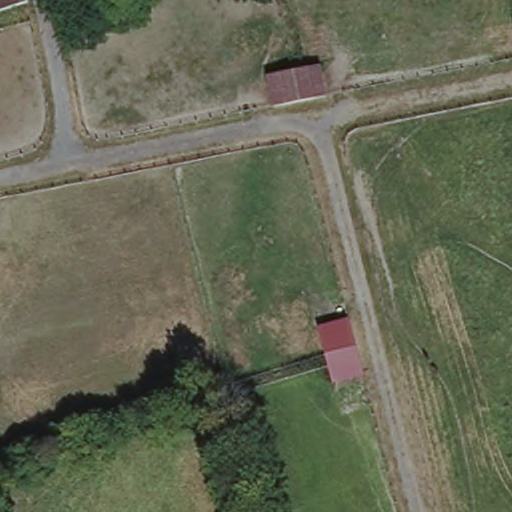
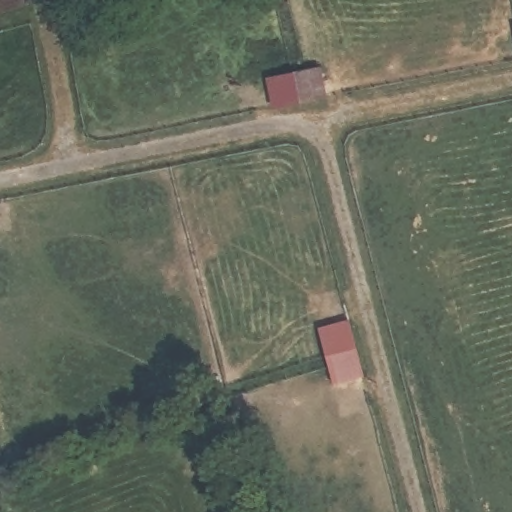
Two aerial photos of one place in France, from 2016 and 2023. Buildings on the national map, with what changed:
unchanged [(0,13),(0,0),(27,0),(28,4),(0,13)]
unchanged [(322,64),(328,94),(276,105),(269,74),(322,64)]
unchanged [(348,320),(364,375),(332,382),(319,328),(348,320)]

